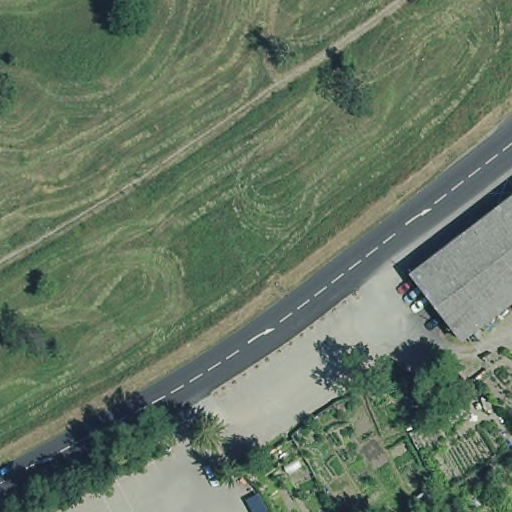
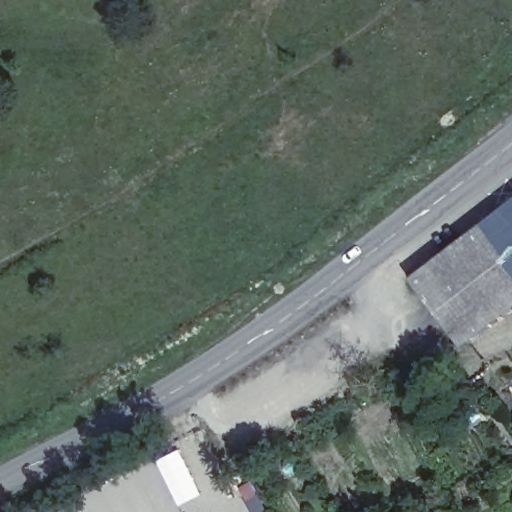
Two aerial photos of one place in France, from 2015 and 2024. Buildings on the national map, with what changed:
unchanged [(468,338),(421,276),(512,205),(512,303),(468,338)]

